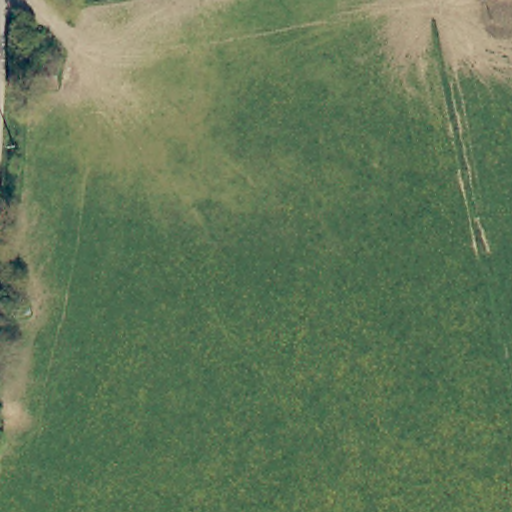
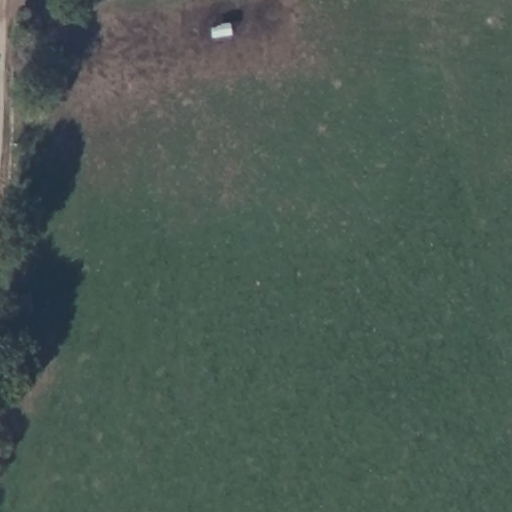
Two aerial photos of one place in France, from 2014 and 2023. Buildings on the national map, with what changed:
unchanged [(57,60),(61,84),(15,93),(11,68),(57,60)]

